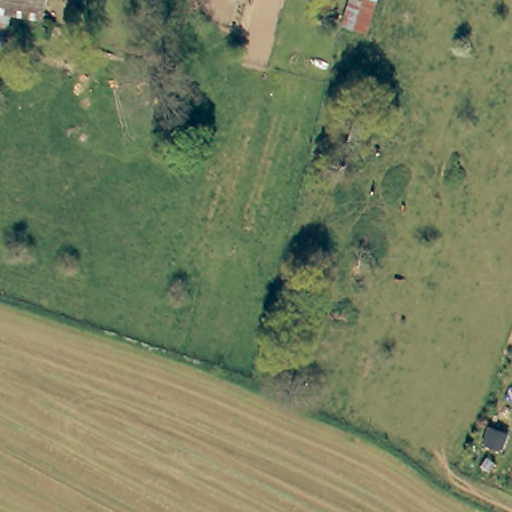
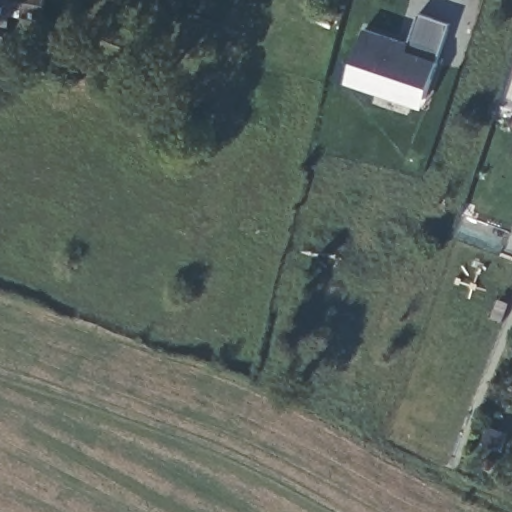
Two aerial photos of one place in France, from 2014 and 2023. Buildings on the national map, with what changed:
unchanged [(0,13),(0,0),(50,0),(48,19),(0,13)]
new [(422,109),(345,82),(365,27),(410,42),(420,13),(452,24),(422,109)]

